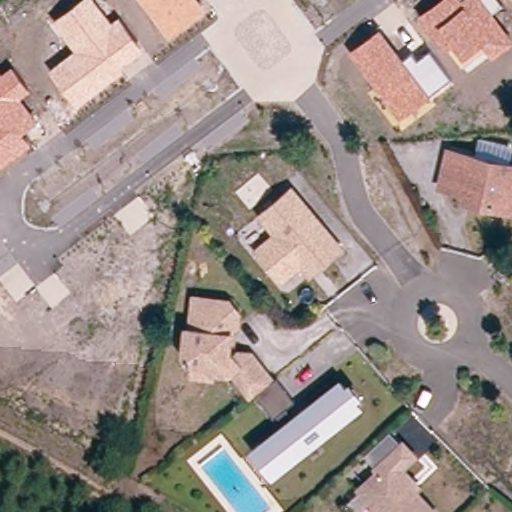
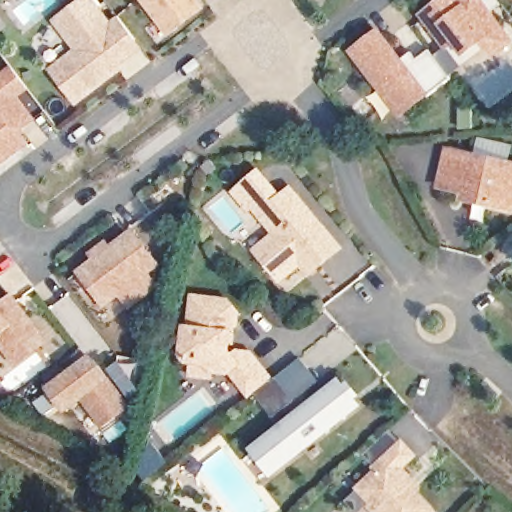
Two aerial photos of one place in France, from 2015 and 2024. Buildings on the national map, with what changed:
unchanged [(111,21),(118,16),(143,49),(123,65),(127,70),(77,108),(47,70),(75,49),(53,20),(81,0),(95,0),(111,21)]
unchanged [(208,9),(169,38),(142,0),(201,0),(208,9)]
unchanged [(502,4),(493,11),(512,38),(512,43),(492,58),(483,45),(462,61),(451,47),(446,50),(419,14),(438,0),(499,0),(502,4)]
unchanged [(404,59),(413,52),(419,59),(430,50),(452,79),(400,118),(349,52),(379,28),(404,59)]
unchanged [(2,73),(12,65),(31,90),(20,98),(38,120),(22,134),(31,145),(0,169),(0,70),(2,73)]
unchanged [(469,190),(448,185),(438,182),(441,165),(445,146),(512,163),(512,207),(468,197),(469,190)]
new [(257,208),(248,213),(229,191),(238,184),(259,165),(281,194),(260,211),(257,208)]
unchanged [(291,185),(342,245),(312,271),(301,258),(280,276),(257,248),(277,231),(260,211),(291,185)]
new [(122,296),(107,307),(77,269),(92,257),(88,251),(107,237),(111,243),(132,226),(162,264),(151,272),(161,283),(131,308),(122,296)]
new [(51,338),(16,366),(1,344),(0,345),(0,301),(14,291),(51,338)]
unchanged [(295,394),(271,412),(254,394),(248,399),(227,374),(212,371),(209,381),(189,377),(191,360),(180,353),(187,324),(193,323),(198,294),(231,299),(240,310),(240,320),(232,322),(227,347),(231,356),(239,349),(252,352),(275,377),(278,373),(295,394)]
new [(91,355),(94,359),(115,386),(105,422),(83,395),(67,408),(50,387),(68,373),(91,355)]
unchanged [(364,407),(266,481),(244,450),(339,376),(364,407)]
unchanged [(375,474),(372,470),(373,469),(360,456),(385,432),(398,445),(399,444),(413,459),(400,472),(420,493),(413,500),(424,512),(369,512),(353,495),(375,474)]

